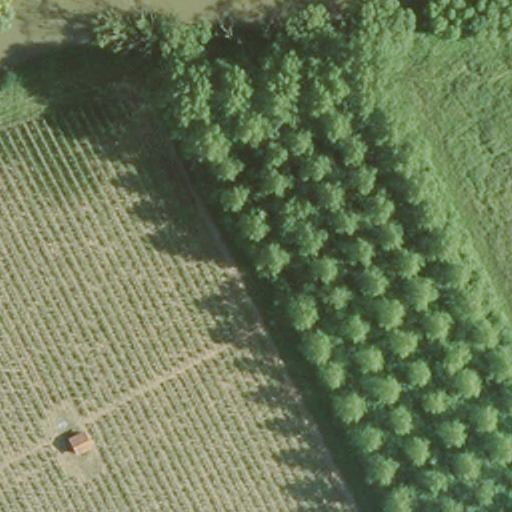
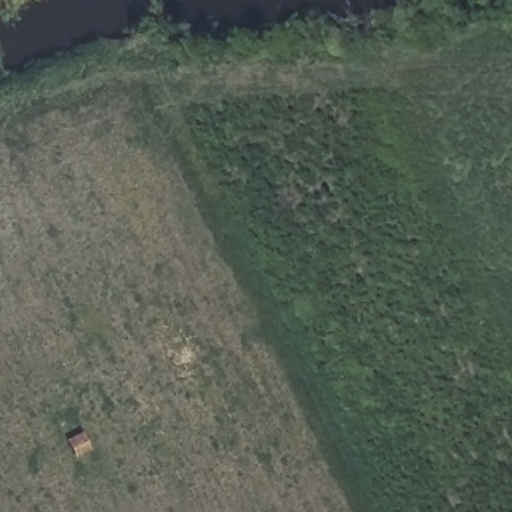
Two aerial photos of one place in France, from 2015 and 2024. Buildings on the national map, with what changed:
unchanged [(76,432),(85,449),(71,456),(62,438),(76,432)]

